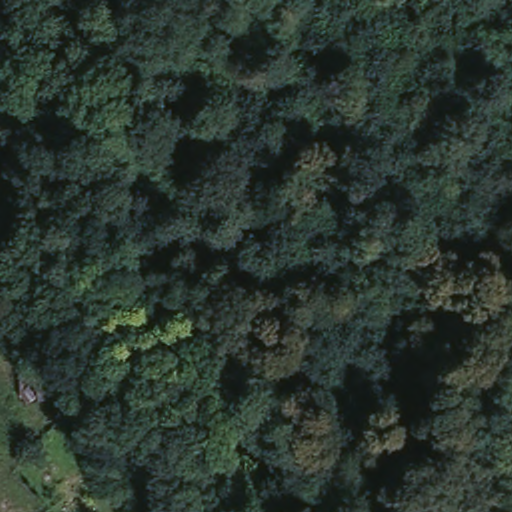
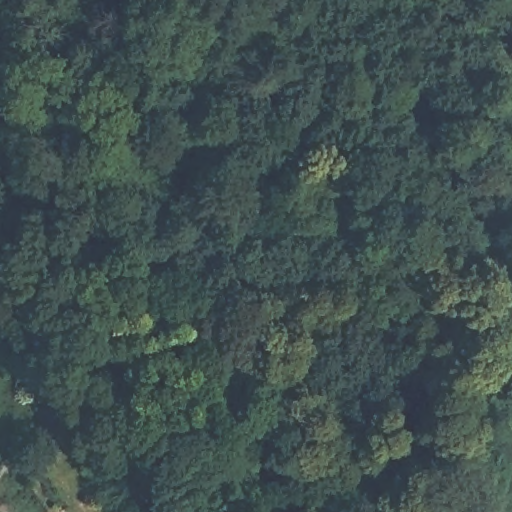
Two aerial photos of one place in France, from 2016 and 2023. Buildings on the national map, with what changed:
unchanged [(54,401),(24,407),(15,375),(45,369),(54,401)]

